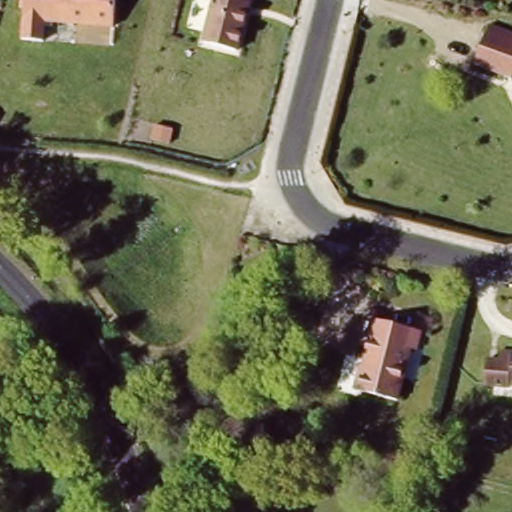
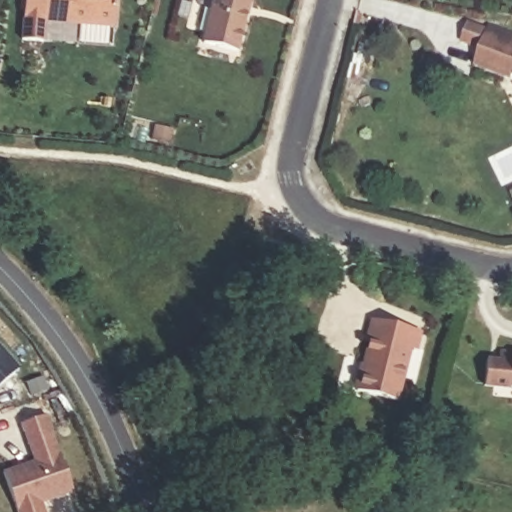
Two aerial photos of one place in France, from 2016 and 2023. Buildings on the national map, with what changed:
unchanged [(47,40),(24,35),(26,0),(120,0),(118,23),(50,20),(47,40)]
unchanged [(207,37),(219,0),(251,0),(240,49),(207,37)]
unchanged [(476,64),(492,21),(512,28),(512,75),(476,64)]
unchanged [(375,313),(430,327),(425,348),(415,349),(403,400),(357,385),(375,313)]
new [(0,386),(0,346),(20,368),(0,386)]
new [(46,512),(18,512),(4,471),(35,460),(22,423),(47,415),(74,492),(43,503),(46,512)]

